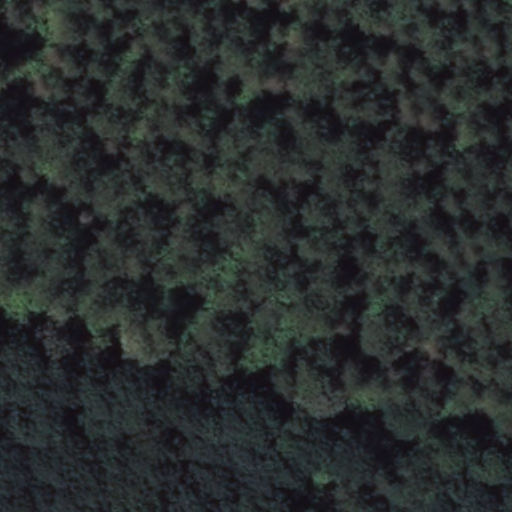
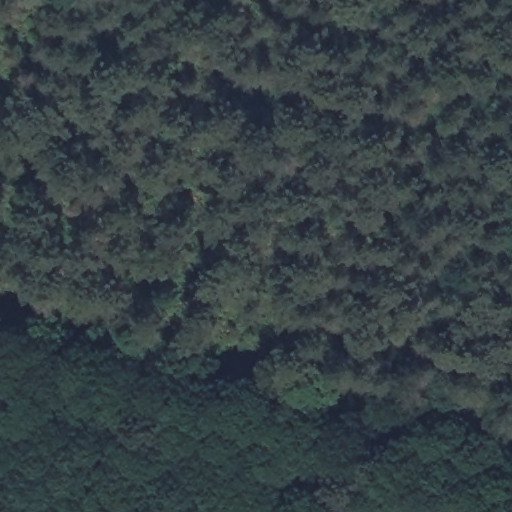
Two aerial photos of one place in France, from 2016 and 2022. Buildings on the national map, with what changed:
[]

